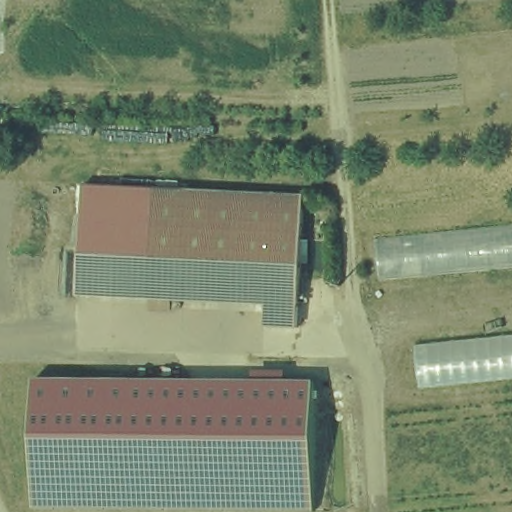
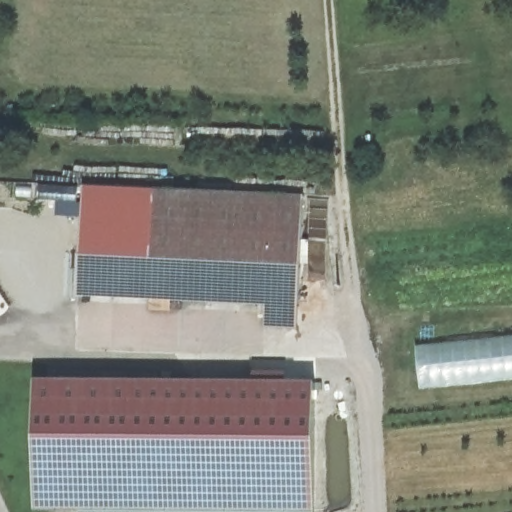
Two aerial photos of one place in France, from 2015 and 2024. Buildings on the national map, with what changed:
unchanged [(276,325),(277,303),(87,295),(90,218),(91,184),(312,194),(311,227),(307,305),(307,327),(276,325)]
demolished [(389,279),(385,239),(512,225),(512,266),(389,279)]
unchanged [(415,343),(512,334),(512,383),(421,391),(415,343)]
unchanged [(312,376),(311,506),(242,505),(30,505),(31,374),(312,376)]

